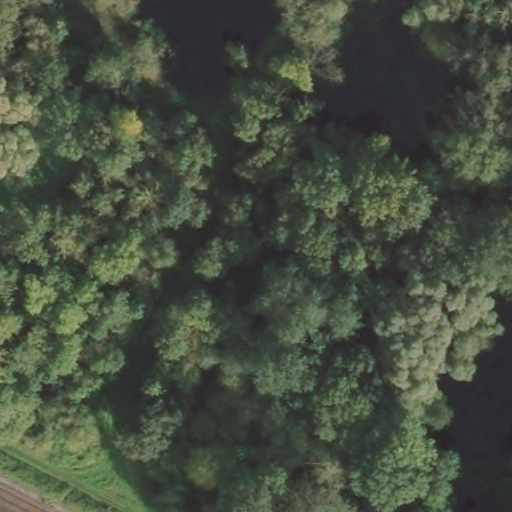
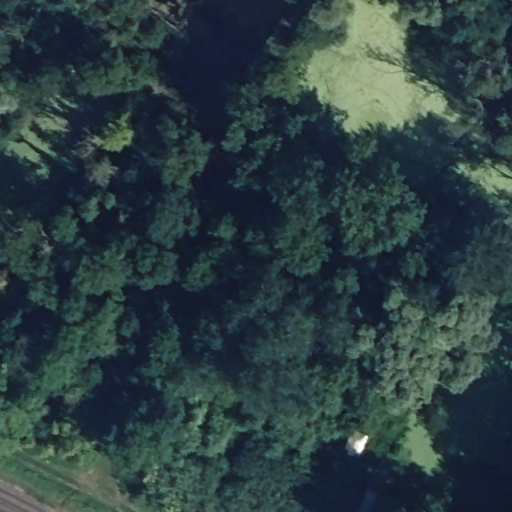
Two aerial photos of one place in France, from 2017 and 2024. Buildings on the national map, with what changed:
unchanged [(391,474),(379,512),(356,512),(372,468),(391,474)]

